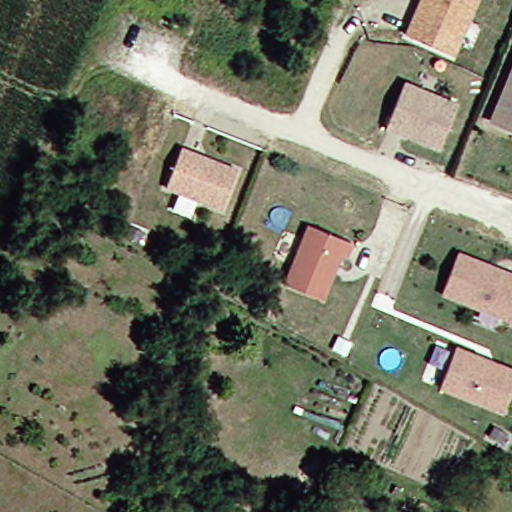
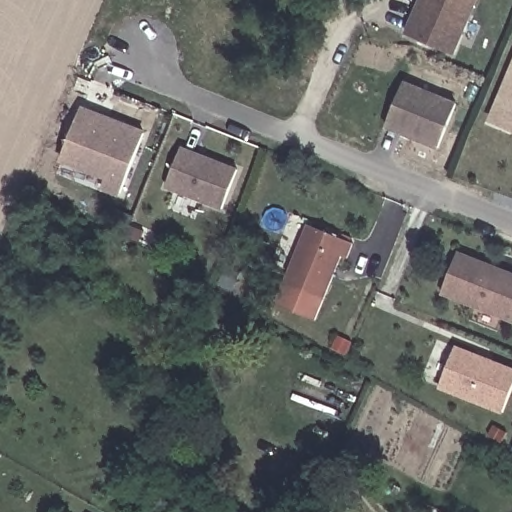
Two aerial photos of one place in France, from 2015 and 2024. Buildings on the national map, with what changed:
unchanged [(455,56),(405,35),(420,0),(478,0),(455,56)]
unchanged [(512,59),(512,130),(487,120),(512,59)]
unchanged [(399,87),(453,104),(439,149),(385,132),(399,87)]
new [(144,131),(120,197),(101,190),(104,180),(60,162),(82,107),(144,131)]
unchanged [(238,167),(221,211),(165,187),(180,146),(238,167)]
unchanged [(354,240),(347,258),(341,256),(325,300),(282,282),(309,222),(354,240)]
unchanged [(512,325),(441,296),(458,249),(512,270),(512,325)]
unchanged [(512,392),(502,416),(439,389),(457,343),(512,365),(512,392)]

